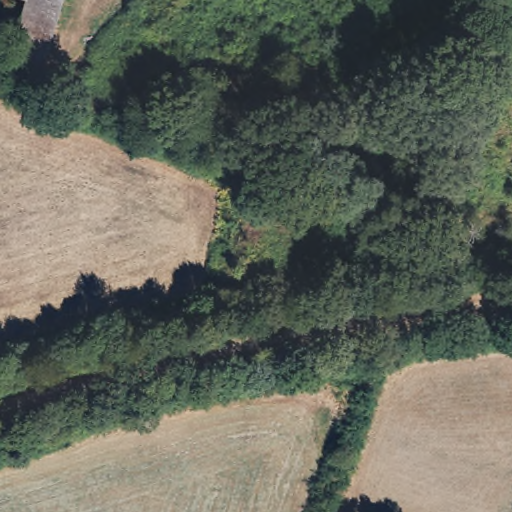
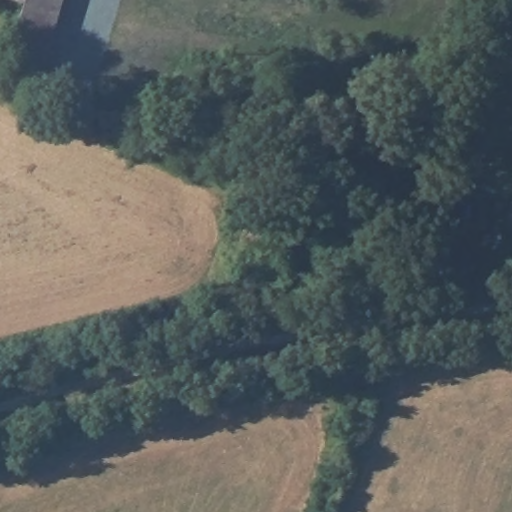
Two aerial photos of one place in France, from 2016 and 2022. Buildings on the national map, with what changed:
unchanged [(38,74),(4,65),(21,2),(14,0),(59,0),(38,74)]

